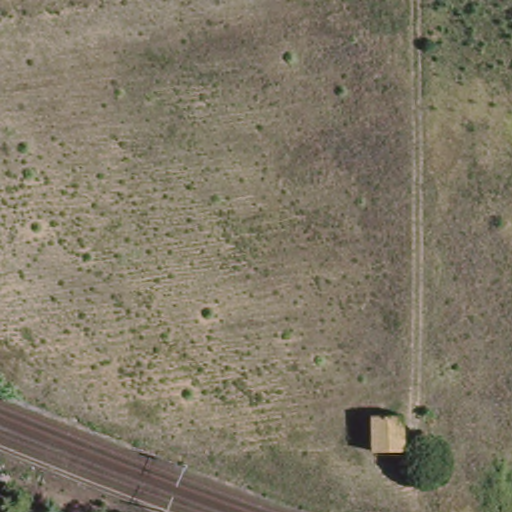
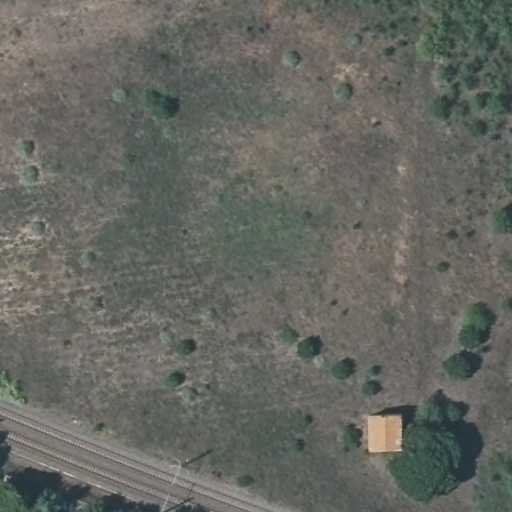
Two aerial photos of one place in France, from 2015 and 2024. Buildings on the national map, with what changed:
unchanged [(398,452),(370,452),(370,420),(399,420),(398,452)]

